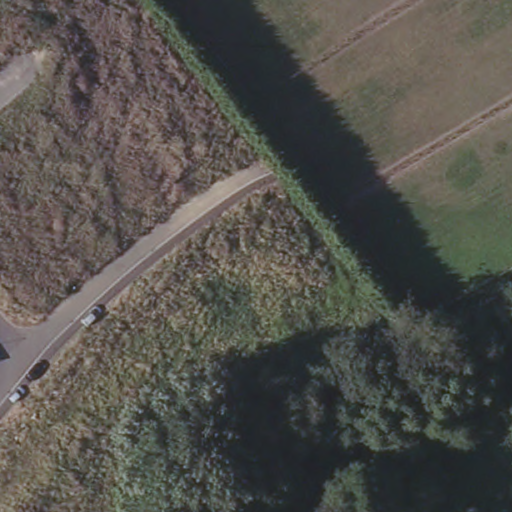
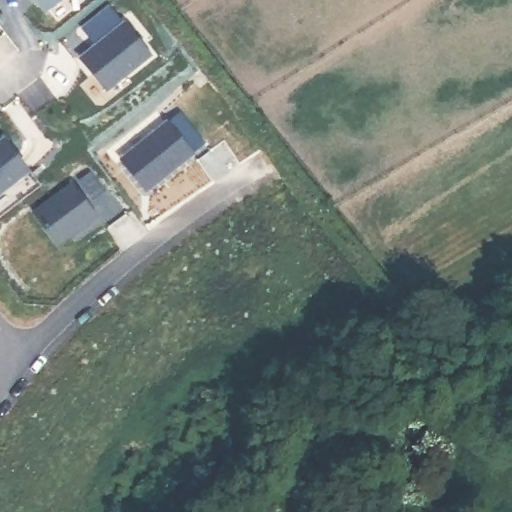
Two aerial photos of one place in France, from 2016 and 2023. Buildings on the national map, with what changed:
new [(46,5),(42,0),(52,0),(46,5)]
new [(127,14),(151,49),(106,86),(80,52),(127,14)]
new [(171,120),(193,151),(146,187),(123,156),(171,120)]
new [(31,163),(0,187),(0,139),(9,132),(31,163)]
new [(58,245),(33,212),(76,181),(101,215),(58,245)]

